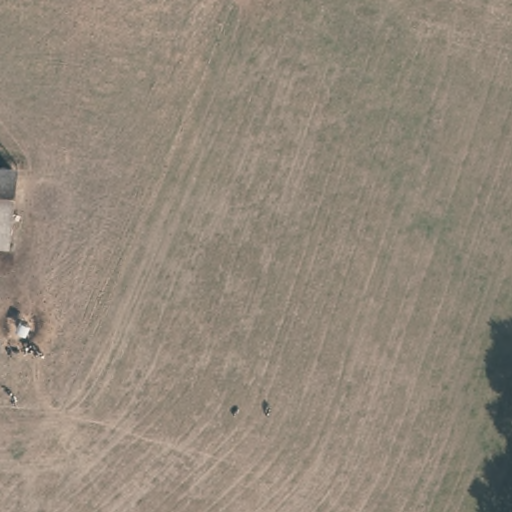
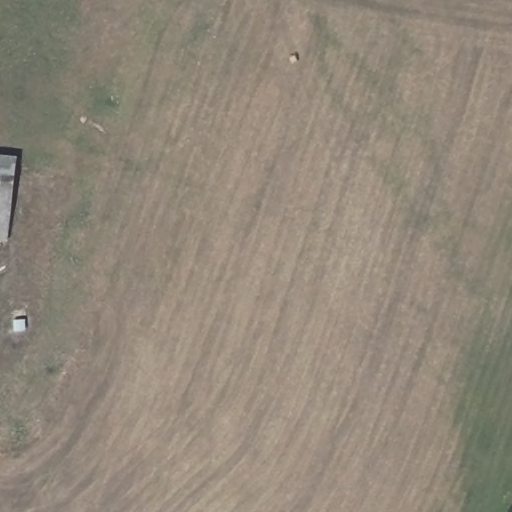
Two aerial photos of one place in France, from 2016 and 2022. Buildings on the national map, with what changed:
unchanged [(7,242),(0,241),(0,157),(16,159),(7,242)]

